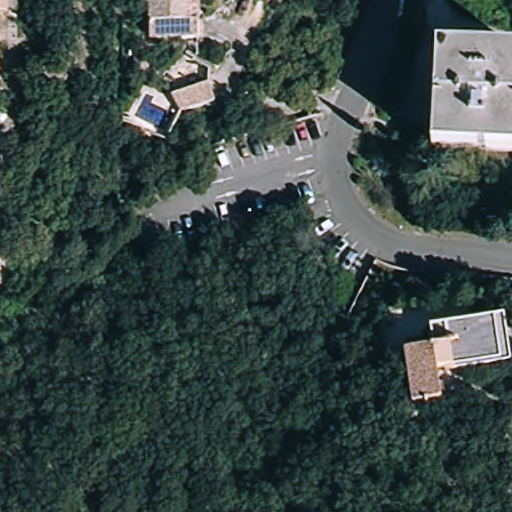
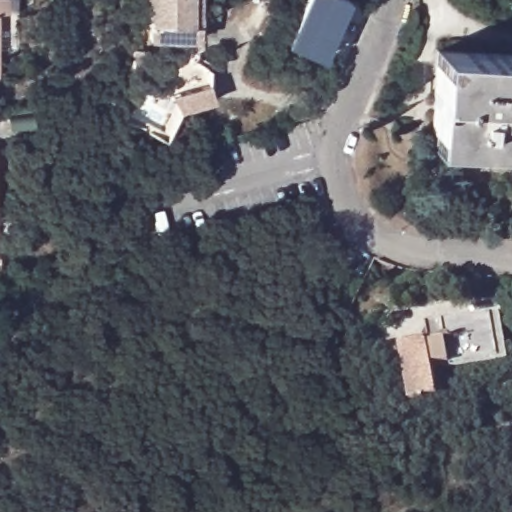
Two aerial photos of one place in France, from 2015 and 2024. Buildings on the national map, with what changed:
unchanged [(12,0),(12,8),(2,8),(2,71),(0,71),(0,0),(12,0)]
unchanged [(150,34),(150,1),(143,1),(143,0),(191,0),(191,34),(150,34)]
new [(342,0),(347,2),(321,64),(293,51),(314,0),(342,0)]
unchanged [(432,146),(437,49),(512,53),(512,150),(432,146)]
unchanged [(129,58),(142,58),(142,80),(129,80),(129,58)]
unchanged [(182,93),(216,81),(222,100),(189,111),(173,102),(182,93)]
unchanged [(437,393),(408,398),(400,345),(399,336),(419,333),(421,342),(430,340),(427,320),(491,312),(500,310),(506,354),(497,355),(433,363),(437,393)]

